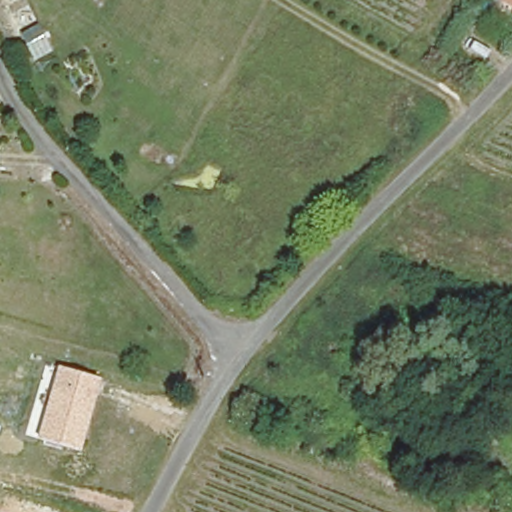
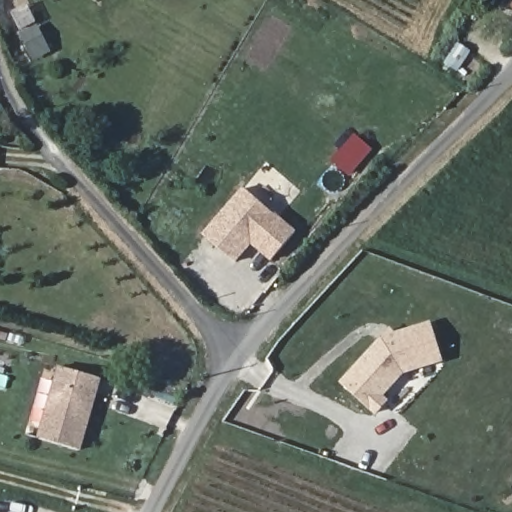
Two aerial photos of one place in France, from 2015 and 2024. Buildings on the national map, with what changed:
demolished [(500,0),(512,0),(512,11),(498,4),(500,0)]
unchanged [(512,0),(512,3),(506,0),(512,0)]
new [(251,245),(236,262),(202,234),(243,186),(296,232),(271,261),(251,245)]
new [(433,321),(446,362),(407,374),(386,396),(392,400),(377,415),(342,382),(382,337),(392,327),(396,332),(433,321)]
unchanged [(82,451),(40,440),(60,367),(105,378),(82,451)]

